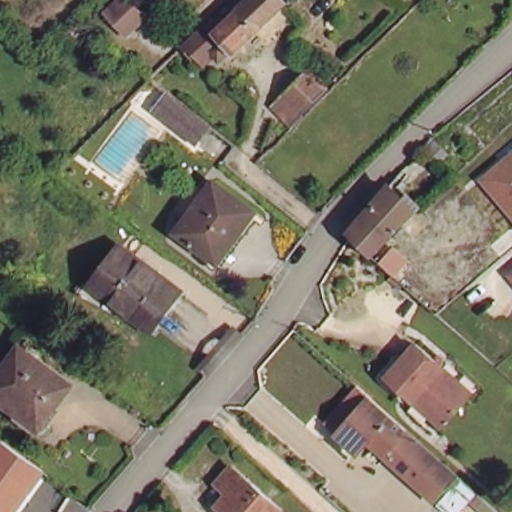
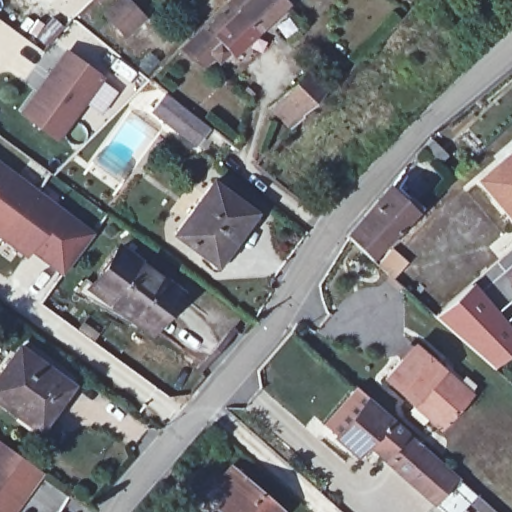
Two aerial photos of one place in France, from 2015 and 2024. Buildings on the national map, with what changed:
unchanged [(112,0),(119,0),(135,17),(118,34),(99,12),(112,0)]
unchanged [(201,61),(191,50),(183,57),(172,47),(200,23),(216,9),(226,0),(287,0),(290,2),(279,12),(287,22),(270,39),(260,27),(230,52),(226,48),(218,57),(211,51),(201,61)]
demolished [(75,36),(85,28),(91,22),(114,43),(106,51),(98,60),(75,36)]
new [(103,74),(55,141),(20,114),(66,49),(103,74)]
unchanged [(265,100),(290,78),(293,76),(301,68),(321,92),(310,101),(285,124),(265,100)]
unchanged [(182,141),(136,110),(148,92),(151,94),(179,112),(195,124),(182,141)]
unchanged [(440,145),(431,154),(420,142),(429,133),(440,145)]
unchanged [(512,153),(512,211),(482,178),(512,153)]
new [(30,252),(26,259),(0,239),(0,161),(95,231),(61,275),(30,252)]
unchanged [(255,214),(216,265),(175,235),(213,183),(255,214)]
unchanged [(373,251),(370,254),(347,233),(346,232),(385,184),(417,210),(373,251)]
unchanged [(133,312),(130,317),(96,291),(128,251),(184,292),(155,328),(133,312)]
unchanged [(512,269),(512,282),(506,275),(512,269)]
new [(512,326),(512,357),(495,372),(434,317),(474,281),(512,326)]
unchanged [(389,379),(420,345),(446,369),(475,395),(471,398),(445,428),(389,379)]
unchanged [(45,427),(0,394),(0,379),(22,347),(73,385),(45,427)]
unchanged [(412,432),(392,455),(391,456),(375,442),(365,455),(343,436),(328,423),(360,387),(375,399),(403,425),(412,432)]
unchanged [(428,447),(465,479),(446,501),(392,455),(412,432),(428,447)]
unchanged [(28,495),(25,492),(11,512),(0,512),(0,455),(37,481),(28,495)]
unchanged [(278,512),(225,512),(215,503),(226,491),(216,482),(231,466),(280,510),(278,512)]
demolished [(437,512),(446,501),(465,479),(503,512),(437,512)]

